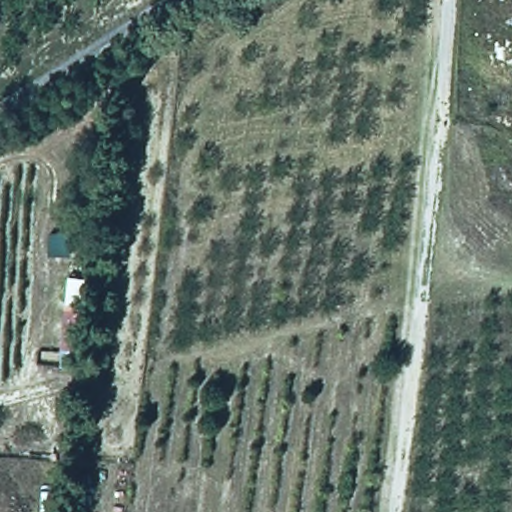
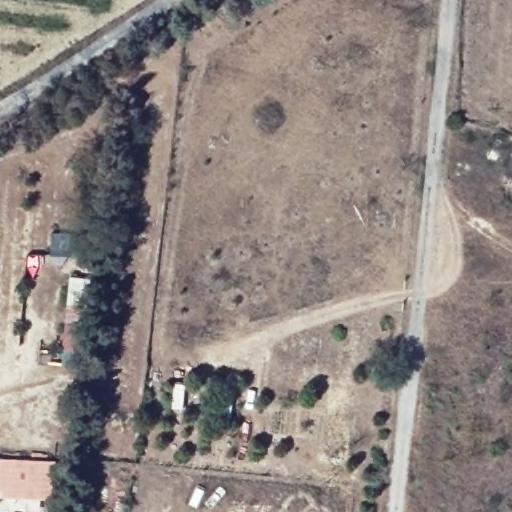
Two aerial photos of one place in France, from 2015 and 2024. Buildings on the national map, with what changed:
new [(58,460),(55,500),(0,498),(0,457),(58,460)]

